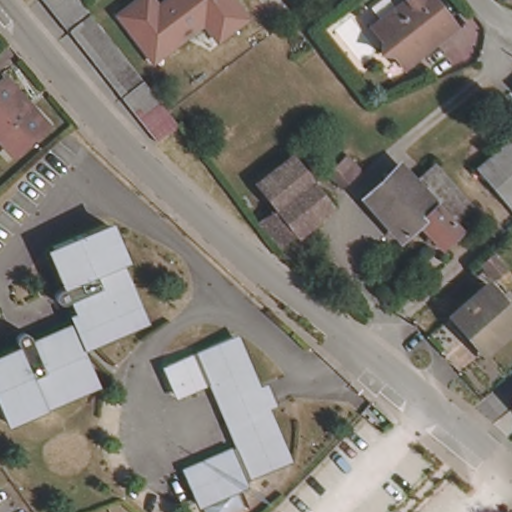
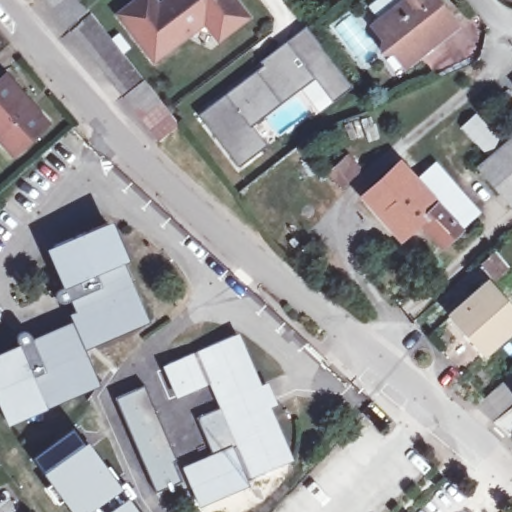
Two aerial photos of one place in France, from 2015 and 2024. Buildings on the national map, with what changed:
unchanged [(184,130),(161,148),(47,2),(50,0),(83,0),(184,130)]
unchanged [(213,29),(208,23),(157,61),(122,16),(143,0),(155,0),(161,8),(172,0),(236,0),(251,19),(233,31),(221,41),(213,29)]
unchanged [(429,50),(404,69),(393,54),(382,52),(384,42),(371,25),(405,0),(436,0),(452,20),(458,28),(429,50)]
new [(291,46),(310,31),(351,84),(333,99),(312,72),(305,78),(248,122),(268,149),(241,169),(200,116),(284,51),(291,46)]
unchanged [(0,130),(0,85),(6,93),(18,82),(60,132),(27,161),(0,130)]
unchanged [(512,147),(512,208),(482,172),(512,147)]
unchanged [(353,158),(362,168),(343,185),(334,175),(353,158)]
unchanged [(444,244),(422,221),(403,237),(366,196),(403,165),(417,181),(429,171),(436,165),(479,213),(472,219),(462,229),(444,244)]
unchanged [(87,348),(69,306),(64,308),(63,309),(61,309),(60,309),(59,308),(58,308),(57,307),(56,307),(55,306),(55,305),(54,304),(54,303),(54,302),(54,301),(54,300),(54,299),(55,298),(55,297),(56,296),(58,295),(58,294),(63,292),(58,279),(63,277),(53,251),(106,228),(114,249),(133,290),(146,323),(87,348)]
unchanged [(483,265),(499,251),(512,268),(512,300),(497,281),(483,265)]
unchanged [(512,338),(494,354),(459,314),(497,281),(512,300),(512,338)]
unchanged [(3,426),(0,418),(0,365),(7,362),(5,357),(18,352),(15,347),(15,346),(15,345),(15,344),(15,343),(15,342),(16,341),(16,340),(17,339),(18,339),(18,338),(19,338),(20,337),(21,337),(22,337),(23,337),(24,337),(25,337),(26,338),(27,338),(28,339),(28,340),(29,340),(29,342),(31,346),(47,340),(49,346),(75,335),(97,386),(68,398),(23,418),(3,426)]
unchanged [(166,365),(232,337),(254,388),(261,385),(271,409),(264,411),(287,465),(196,504),(181,470),(236,447),(209,385),(180,398),(166,365)]
new [(69,512),(41,472),(31,458),(74,427),(86,439),(125,489),(89,512),(69,512)]
unchanged [(5,468),(0,472),(0,461),(5,468)]
new [(142,512),(89,512),(125,489),(142,512)]

